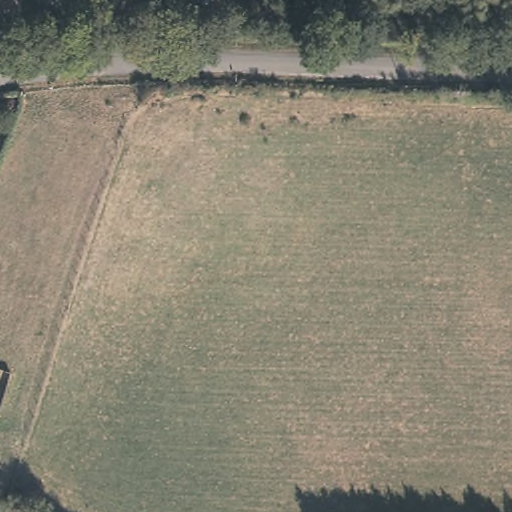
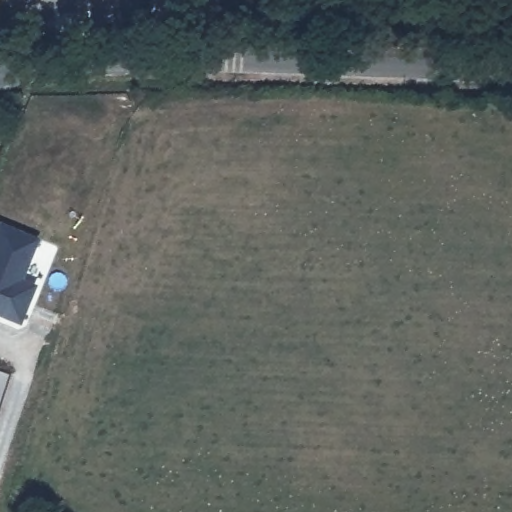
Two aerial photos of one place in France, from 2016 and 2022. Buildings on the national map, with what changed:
new [(0,220),(40,236),(24,277),(37,282),(21,323),(0,315),(0,220)]

